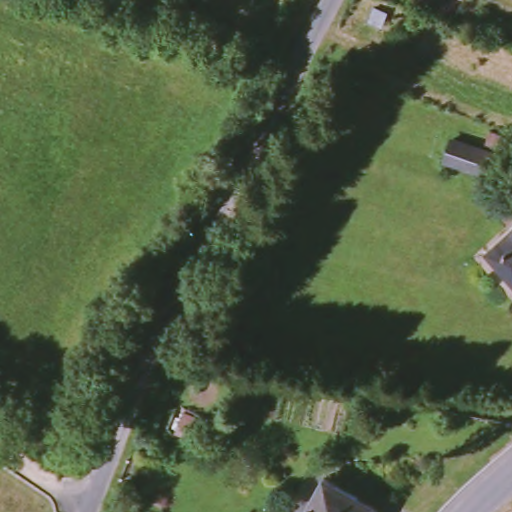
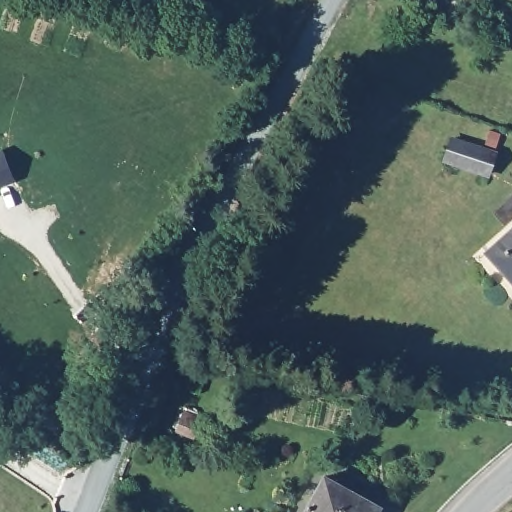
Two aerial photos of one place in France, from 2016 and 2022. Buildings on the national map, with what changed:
unchanged [(450,140),(494,154),(484,177),(441,163),(450,140)]
new [(0,184),(0,152),(1,152),(12,180),(0,184)]
unchanged [(512,240),(512,277),(494,256),(512,240)]
unchanged [(182,415),(198,421),(190,438),(174,431),(182,415)]
unchanged [(381,505),(377,512),(305,512),(326,474),(381,505)]

